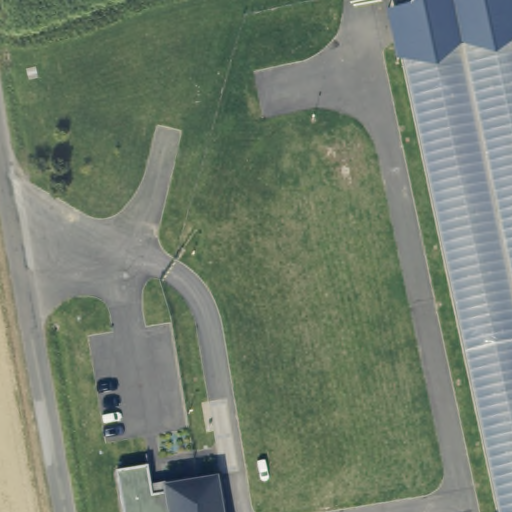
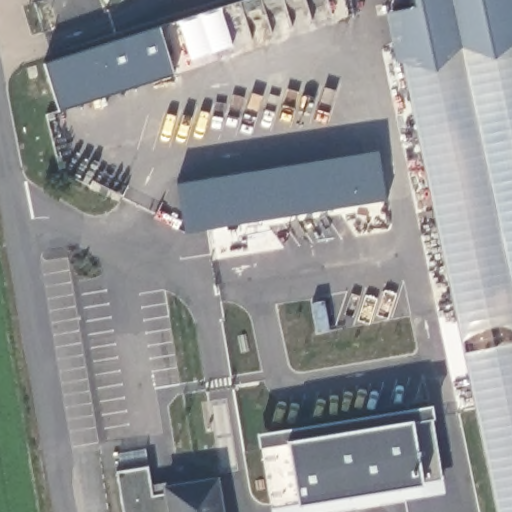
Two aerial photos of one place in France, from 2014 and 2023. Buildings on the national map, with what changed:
unchanged [(401,58),(397,59),(387,10),(393,10),(395,9),(418,4),(417,0),(512,0),(512,512),(496,512),(401,58)]
new [(58,112),(43,63),(158,26),(172,76),(58,112)]
new [(186,231),(178,185),(378,151),(385,200),(186,231)]
new [(332,512),(271,512),(260,448),(257,433),(430,406),(432,417),(443,495),(332,512)]
unchanged [(147,464),(153,494),(158,493),(158,491),(165,490),(164,485),(197,480),(216,477),(221,512),(122,512),(115,469),(147,464)]

